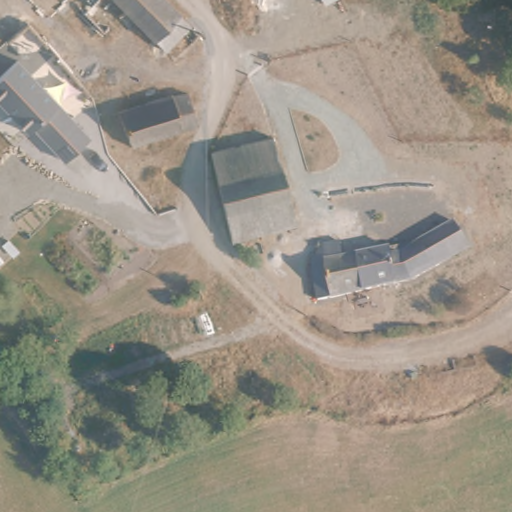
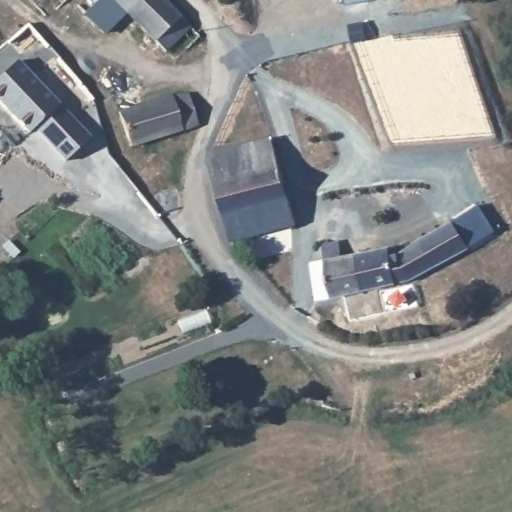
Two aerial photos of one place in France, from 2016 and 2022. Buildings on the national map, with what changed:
unchanged [(184,46),(176,37),(161,52),(121,14),(101,34),(74,8),(81,0),(162,0),(196,34),(184,46)]
unchanged [(21,62),(89,140),(63,164),(34,129),(27,135),(0,104),(0,78),(21,62)]
unchanged [(174,94),(184,99),(193,125),(189,126),(129,146),(119,111),(174,94)]
unchanged [(275,139),(295,228),(236,242),(215,152),(275,139)]
unchanged [(404,243),(409,248),(450,222),(465,245),(429,268),(406,279),(319,302),(310,266),(324,262),(320,247),(328,245),(339,242),(343,257),(355,254),(383,248),(404,243)]

